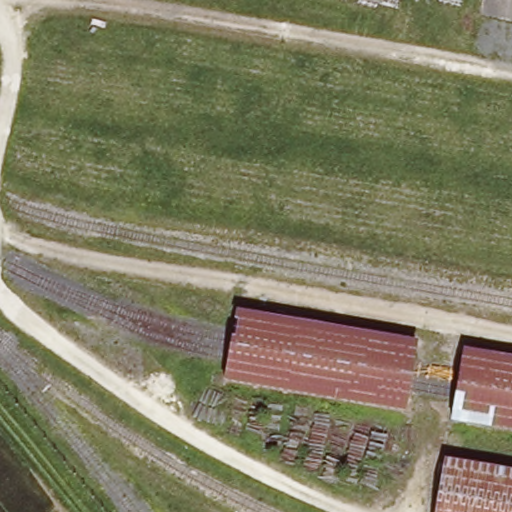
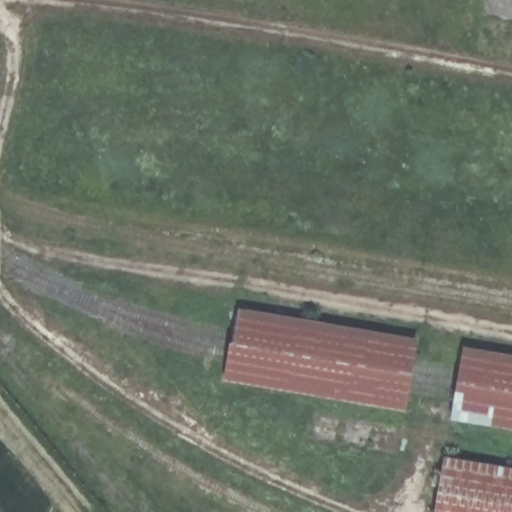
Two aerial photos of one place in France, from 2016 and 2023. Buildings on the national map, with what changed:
unchanged [(422,344),(409,418),(225,386),(239,312),(422,344)]
unchanged [(465,352),(512,360),(512,435),(450,424),(465,352)]
unchanged [(512,473),(512,512),(435,512),(443,461),(512,473)]

